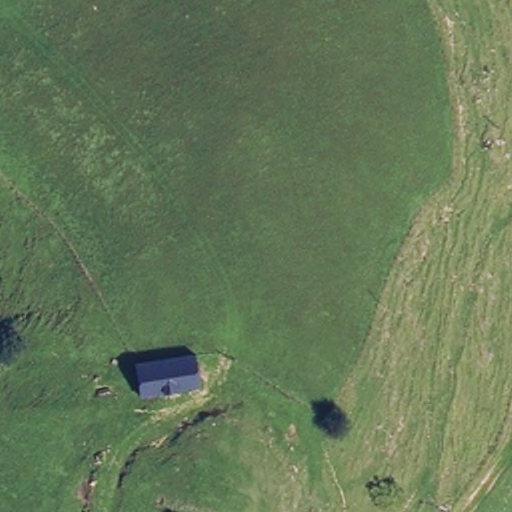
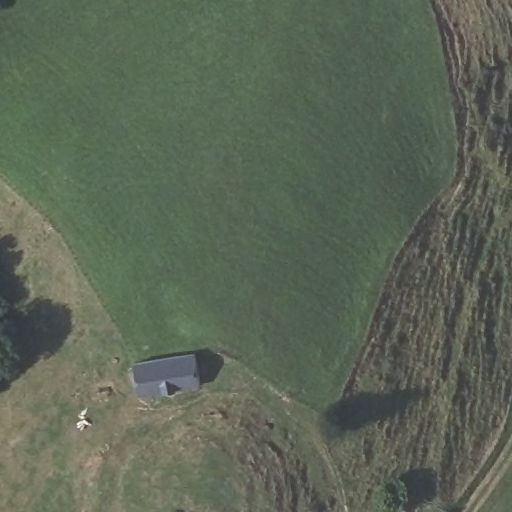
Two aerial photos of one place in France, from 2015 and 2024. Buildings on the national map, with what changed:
unchanged [(195,353),(199,386),(139,391),(134,357),(195,353)]

